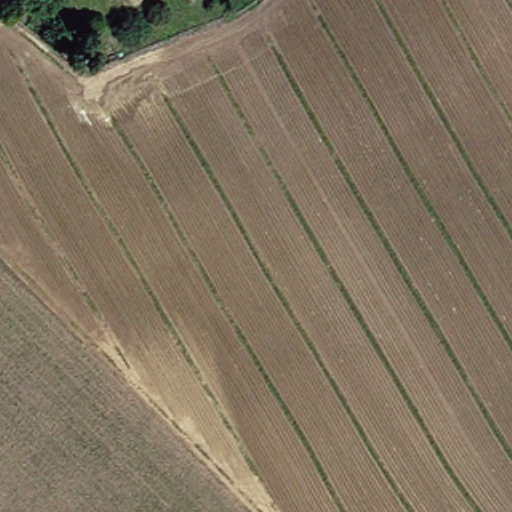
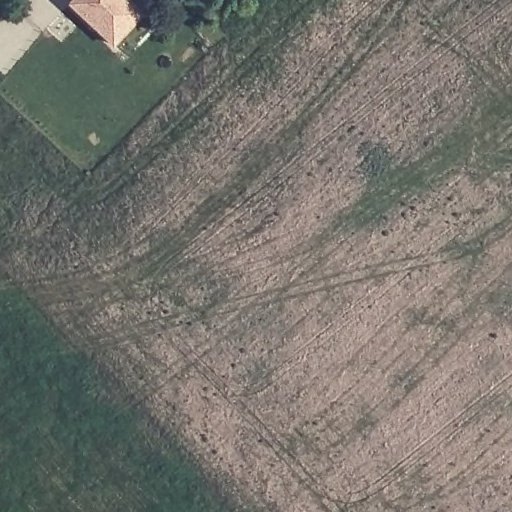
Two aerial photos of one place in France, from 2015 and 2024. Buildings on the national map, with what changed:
new [(74,0),(129,0),(145,16),(116,47),(70,4),(74,0)]

